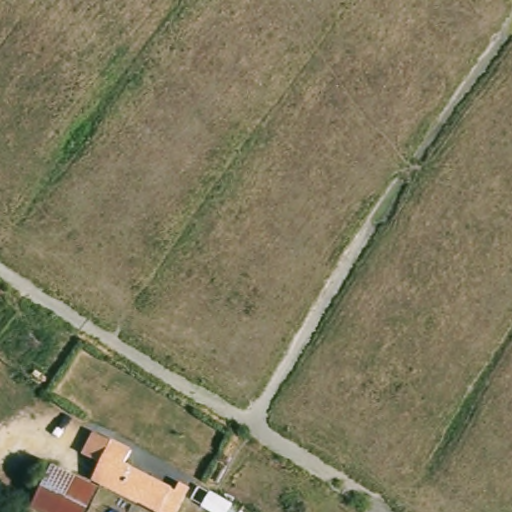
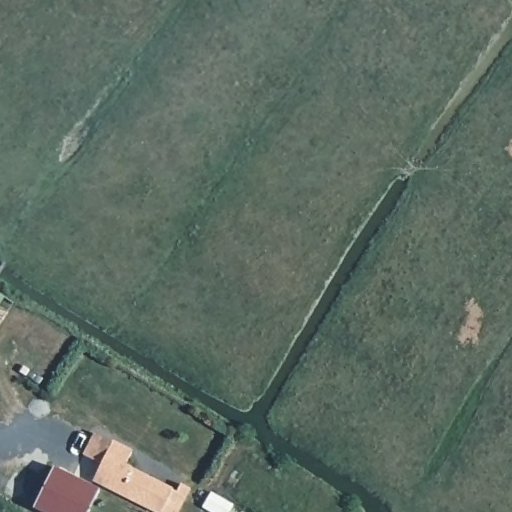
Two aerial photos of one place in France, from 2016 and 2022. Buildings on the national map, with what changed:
unchanged [(99,469),(82,460),(92,438),(110,447),(129,456),(122,471),(175,496),(179,488),(188,492),(179,512),(146,512),(91,485),(99,469)]
unchanged [(97,496),(89,512),(33,512),(52,474),(97,496)]
unchanged [(240,512),(214,512),(193,497),(202,485),(240,512)]

